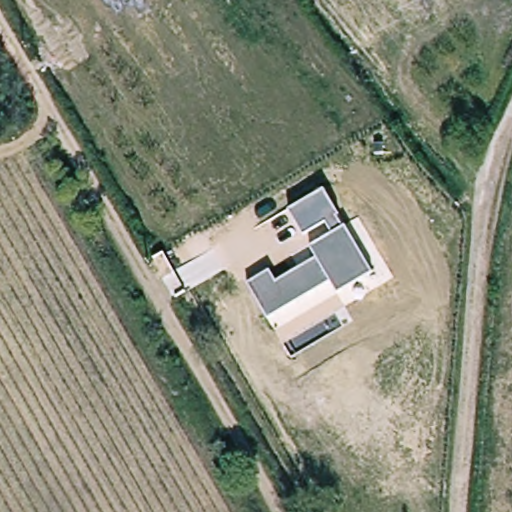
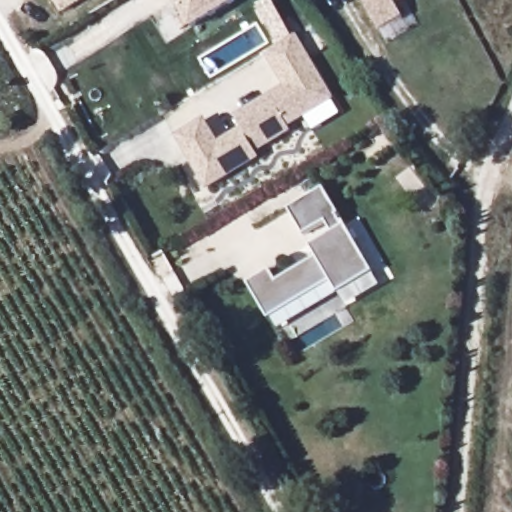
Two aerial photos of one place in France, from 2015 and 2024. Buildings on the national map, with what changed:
new [(53,0),(87,0),(62,15),(53,0)]
new [(271,0),(294,38),(297,36),(334,99),(288,126),(291,132),(255,152),(260,158),(205,190),(173,135),(203,117),(218,141),(241,128),(234,116),(283,86),(264,54),(278,46),(257,7),(268,0),(271,0)]
new [(190,30),(174,0),(236,0),(237,2),(190,30)]
unchanged [(410,16),(378,33),(360,0),(409,0),(403,3),(410,16)]
unchanged [(345,227),(372,272),(339,293),(332,281),(267,319),(248,284),(271,272),(277,284),(318,258),(312,247),(332,236),(325,224),(304,236),(289,210),(324,190),(341,216),(337,218),(345,227)]

